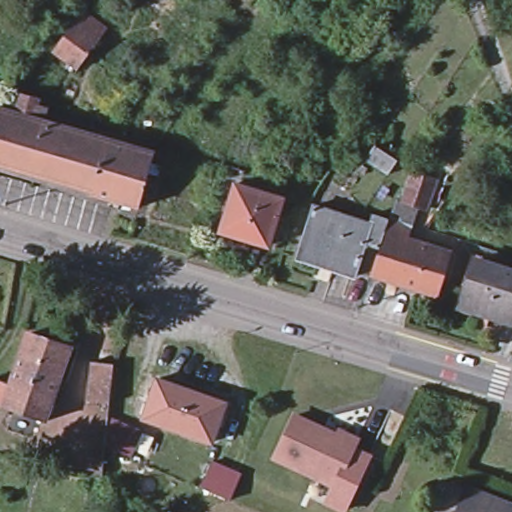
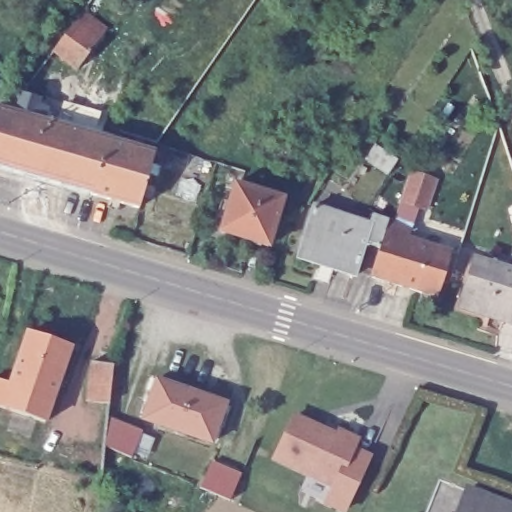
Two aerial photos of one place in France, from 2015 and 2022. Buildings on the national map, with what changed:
unchanged [(80,10),(105,30),(98,39),(76,69),(50,50),(73,20),(80,10)]
unchanged [(0,163),(0,109),(15,114),(19,98),(21,93),(38,98),(36,103),(32,119),(105,140),(93,189),(0,163)]
unchanged [(105,140),(153,153),(138,206),(91,193),(93,189),(105,140)]
unchanged [(409,173),(439,182),(429,216),(416,212),(410,230),(394,225),(409,173)]
unchanged [(234,183),(280,197),(267,245),(221,232),(234,183)]
unchanged [(410,230),(407,243),(404,241),(389,286),(369,280),(354,275),(352,281),(296,262),(313,210),(368,229),(371,218),(388,223),(394,225),(410,230)]
unchanged [(404,241),(407,243),(450,255),(436,300),(389,286),(404,241)]
unchanged [(476,270),(512,281),(512,331),(461,316),(476,270)]
unchanged [(0,409),(0,382),(9,386),(26,337),(69,352),(53,401),(44,425),(1,410),(0,409)]
unchanged [(90,361),(111,363),(108,403),(86,401),(90,361)]
unchanged [(142,417),(156,378),(189,390),(176,429),(142,417)]
unchanged [(189,390),(223,402),(209,441),(176,429),(189,390)]
unchanged [(334,433),(336,429),(361,442),(358,448),(371,455),(345,512),(341,512),(324,506),(331,488),(271,461),(293,415),(334,433)]
unchanged [(103,422),(136,436),(125,461),(99,450),(103,422)]
unchanged [(209,460),(239,473),(229,498),(198,485),(209,460)]
unchanged [(512,507),(512,510),(511,512),(458,512),(467,489),(512,507)]

